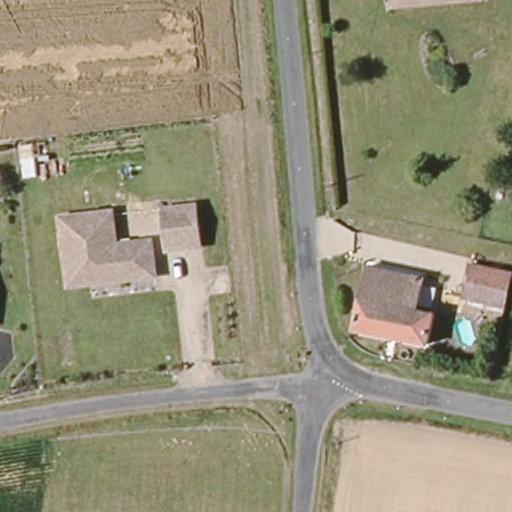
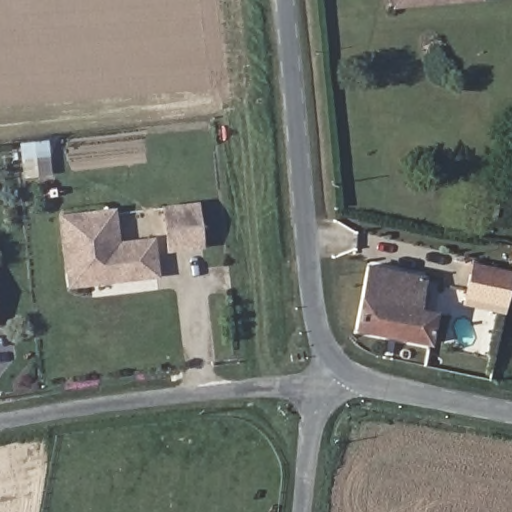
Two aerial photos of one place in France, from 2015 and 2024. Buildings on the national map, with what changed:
unchanged [(196,204),(201,244),(167,249),(162,210),(196,204)]
unchanged [(112,205),(116,239),(152,236),(156,272),(108,276),(90,266),(68,269),(63,211),(112,205)]
unchanged [(507,309),(466,300),(472,263),(512,271),(512,286),(507,309)]
unchanged [(432,282),(425,313),(438,316),(432,350),(360,334),(373,270),(432,282)]

